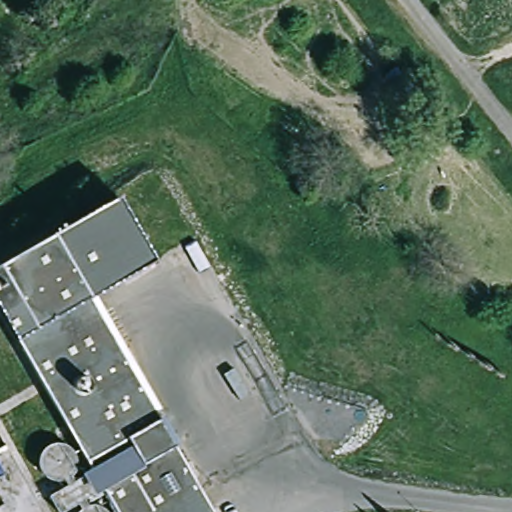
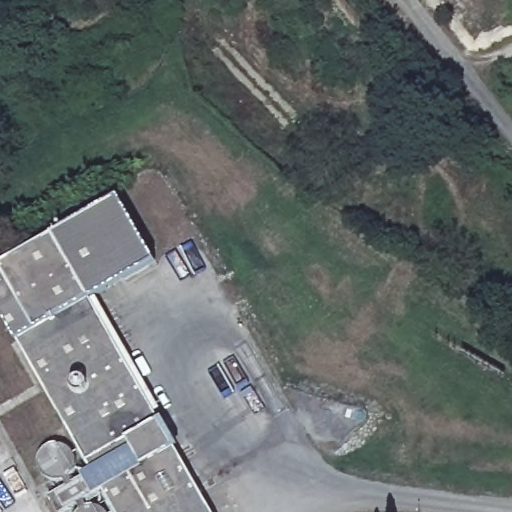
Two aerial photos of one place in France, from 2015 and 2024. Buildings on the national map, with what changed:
unchanged [(118,512),(106,491),(69,512),(63,512),(55,497),(96,472),(20,341),(16,344),(0,316),(0,267),(117,200),(155,265),(95,300),(216,512),(118,512)]
unchanged [(69,445),(75,449),(80,456),(81,463),(80,470),(78,475),(73,480),(66,482),(61,482),(55,480),(49,476),(45,468),(44,461),(46,454),(51,448),(55,446),(62,445),(69,445)]
unchanged [(111,511),(112,512),(84,512),(90,507),(96,505),(103,506),(111,511)]

